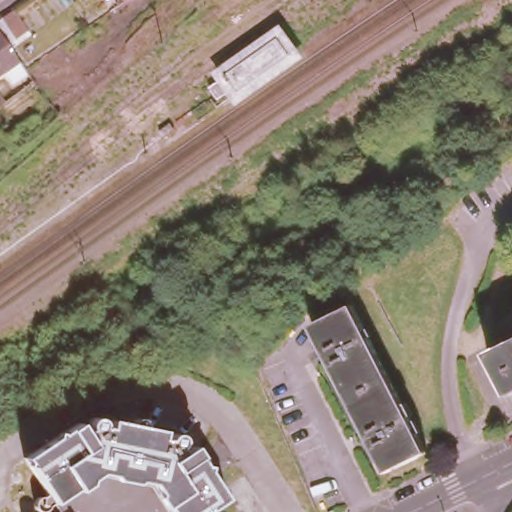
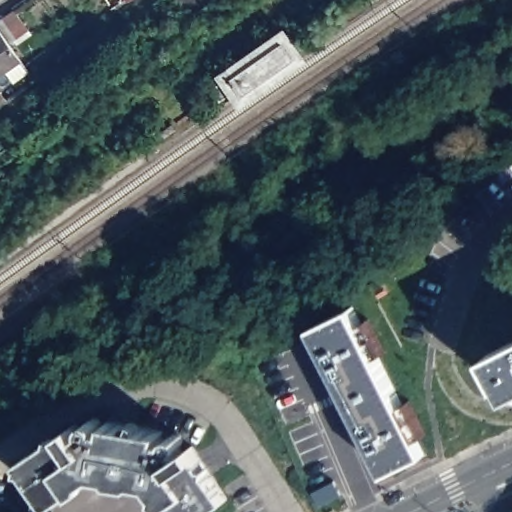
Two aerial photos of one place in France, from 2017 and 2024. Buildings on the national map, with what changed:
unchanged [(19,35),(3,11),(16,4),(32,28),(19,35)]
unchanged [(12,75),(5,64),(0,68),(0,24),(20,54),(25,61),(12,75)]
unchanged [(305,56),(236,104),(228,94),(218,101),(206,86),(217,79),(210,70),(280,24),(305,56)]
unchanged [(352,301),(389,374),(349,393),(312,321),(352,301)]
unchanged [(489,349),(512,338),(512,388),(510,389),(489,349)]
unchanged [(425,447),(386,467),(349,393),(389,374),(425,447)]
unchanged [(163,502),(152,488),(155,486),(152,479),(137,476),(136,481),(111,475),(110,471),(105,469),(90,477),(93,483),(81,490),(77,487),(53,498),(23,454),(60,425),(68,422),(78,417),(83,417),(85,413),(92,410),(100,412),(102,418),(107,419),(108,411),(165,424),(165,428),(167,429),(171,429),(177,427),(186,431),(187,435),(188,444),(192,437),(202,452),(205,456),(232,493),(205,512),(171,512),(163,502)]

